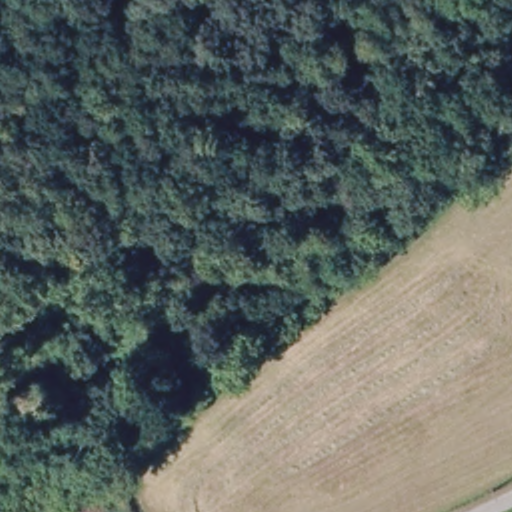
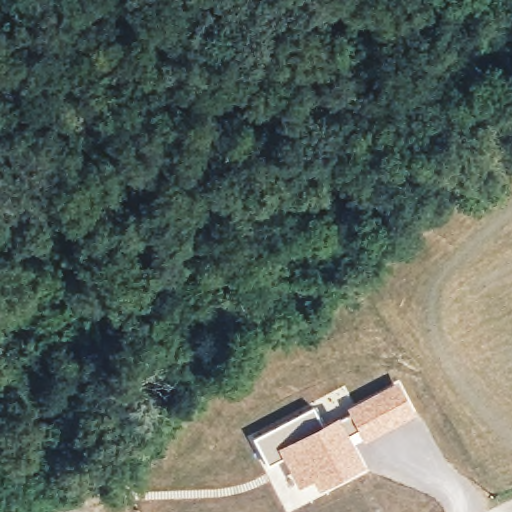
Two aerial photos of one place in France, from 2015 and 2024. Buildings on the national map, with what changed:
new [(399,379),(418,416),(365,443),(348,407),(399,379)]
new [(314,409),(323,424),(340,417),(366,466),(319,491),(313,481),(299,488),(274,439),(314,409)]

